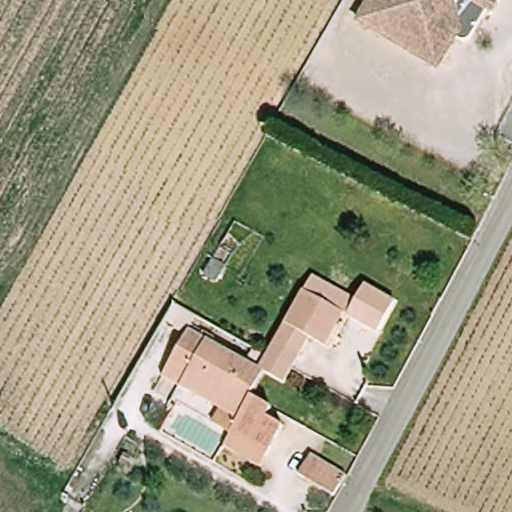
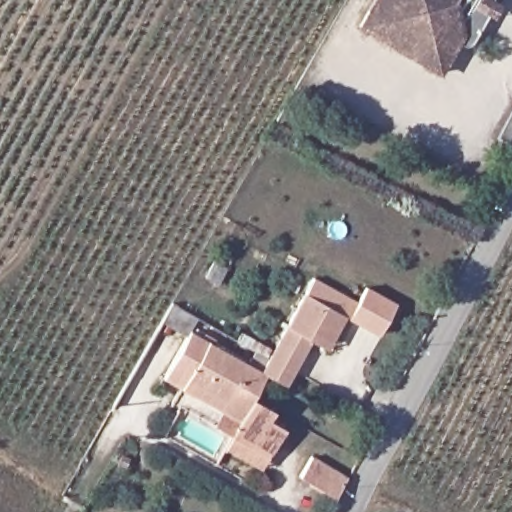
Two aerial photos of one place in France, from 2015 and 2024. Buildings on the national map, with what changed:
unchanged [(361,26),(376,0),(495,0),(494,2),(502,4),(495,17),(490,15),(471,45),(465,42),(463,44),(458,41),(448,58),(437,74),(361,26)]
unchanged [(349,314),(358,298),(388,315),(371,346),(337,327),(319,361),(313,358),(303,352),(278,399),(260,390),(254,387),(305,290),(349,314)]
unchanged [(248,413),(269,424),(260,442),(275,450),(259,480),(222,460),(234,438),(215,427),(222,415),(181,391),(175,404),(158,394),(184,346),(254,387),(260,390),(248,413)]
unchanged [(307,478),(316,459),(349,478),(340,496),(307,478)]

